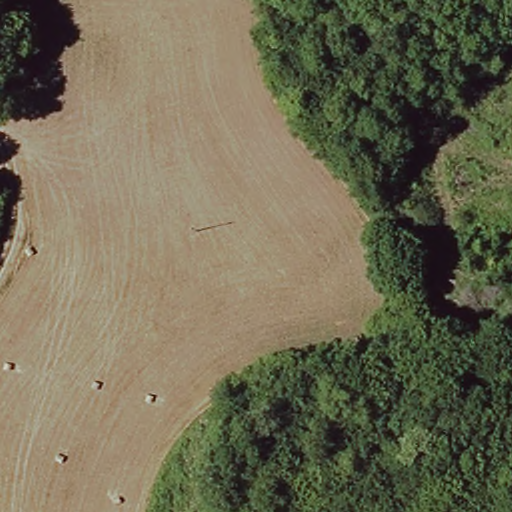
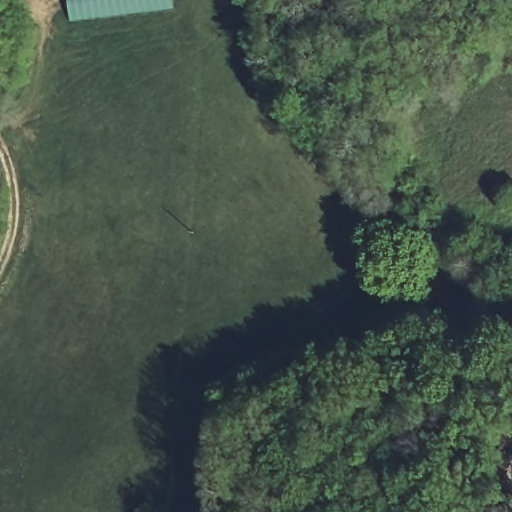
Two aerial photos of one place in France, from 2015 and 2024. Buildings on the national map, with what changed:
new [(173,8),(69,21),(67,0),(172,0),(173,8)]

